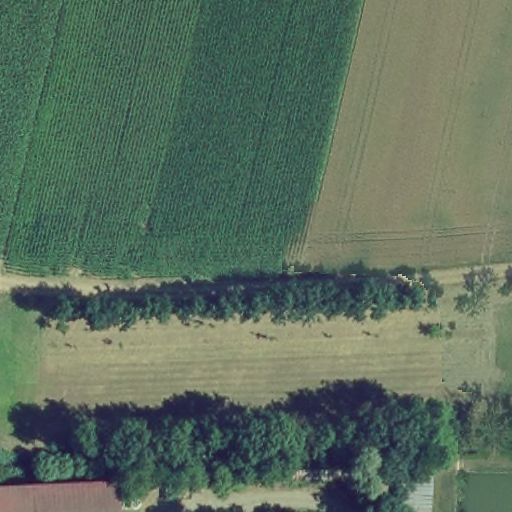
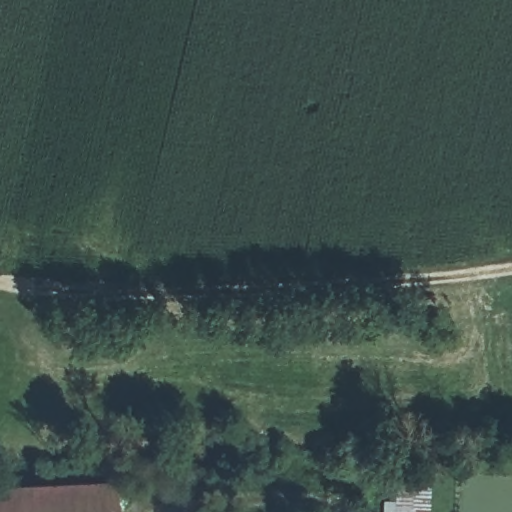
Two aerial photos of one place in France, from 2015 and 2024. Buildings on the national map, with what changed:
unchanged [(431,512),(386,512),(393,459),(435,458),(431,512)]
unchanged [(110,512),(0,512),(0,487),(109,481),(110,512)]

